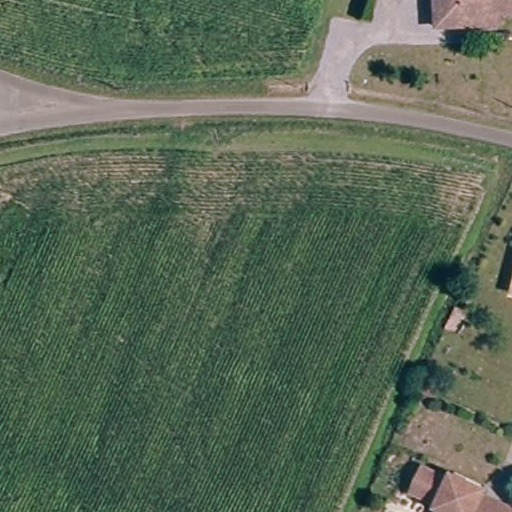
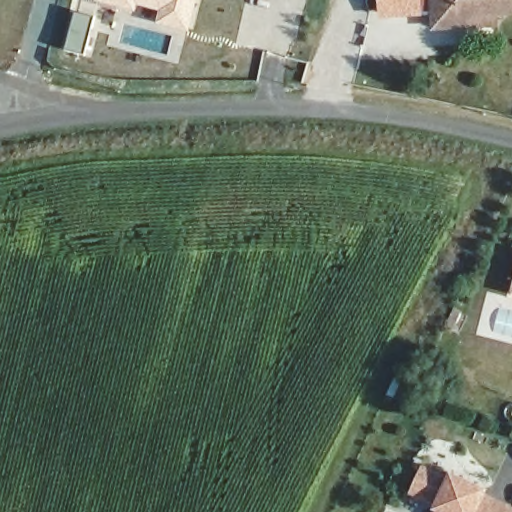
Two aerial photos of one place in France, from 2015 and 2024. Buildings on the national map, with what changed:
new [(188,31),(154,22),(157,12),(136,7),(134,14),(93,2),(94,0),(196,0),(188,31)]
new [(431,12),(423,13),(424,18),(379,21),(378,0),(431,0),(431,12)]
unchanged [(466,22),(432,22),(431,0),(507,0),(507,7),(490,8),(491,22),(466,22)]
new [(73,10),(93,16),(82,55),(63,49),(73,10)]
unchanged [(411,491),(422,469),(445,480),(450,471),(481,485),(479,493),(512,505),(512,512),(435,512),(437,501),(411,491)]

